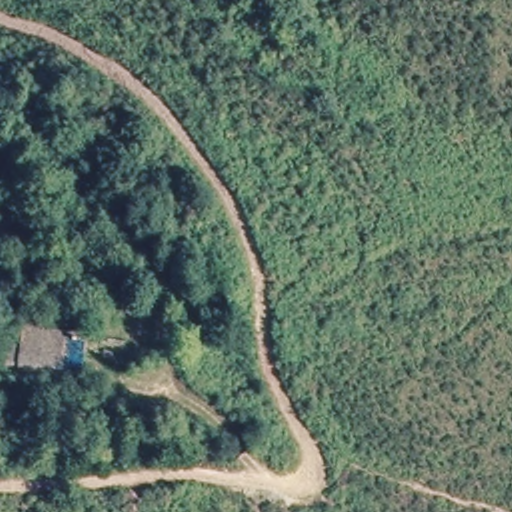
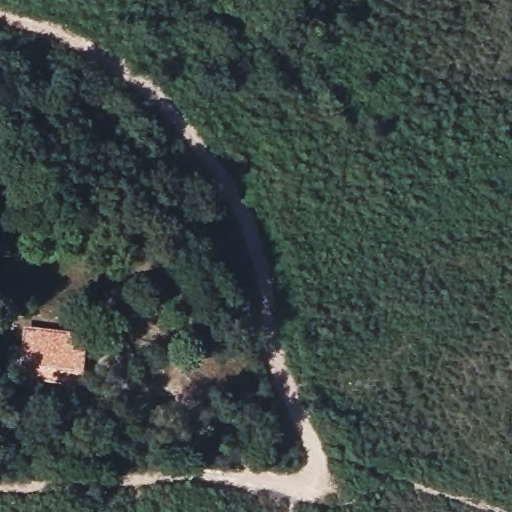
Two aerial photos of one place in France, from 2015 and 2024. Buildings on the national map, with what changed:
unchanged [(25,340),(81,352),(76,380),(20,368),(25,340)]

